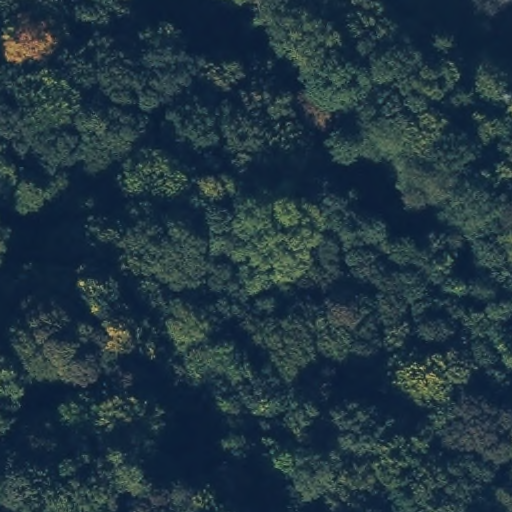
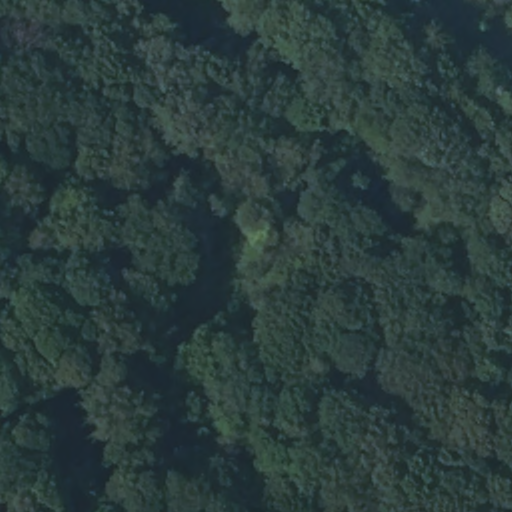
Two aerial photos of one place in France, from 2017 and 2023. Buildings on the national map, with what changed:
[]

